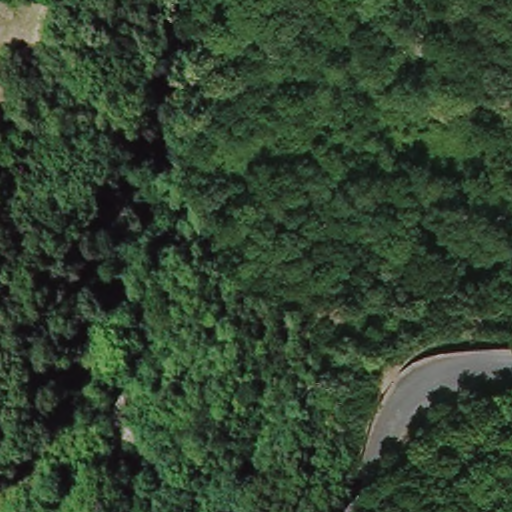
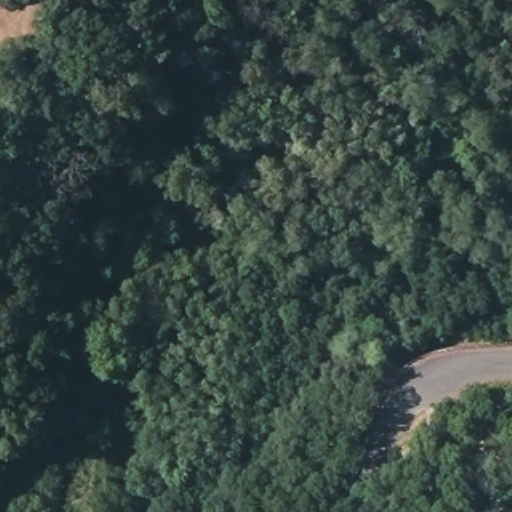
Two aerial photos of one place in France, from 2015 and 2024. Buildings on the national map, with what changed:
unchanged [(410,76),(422,45),(439,52),(434,69),(430,83),(410,76)]

